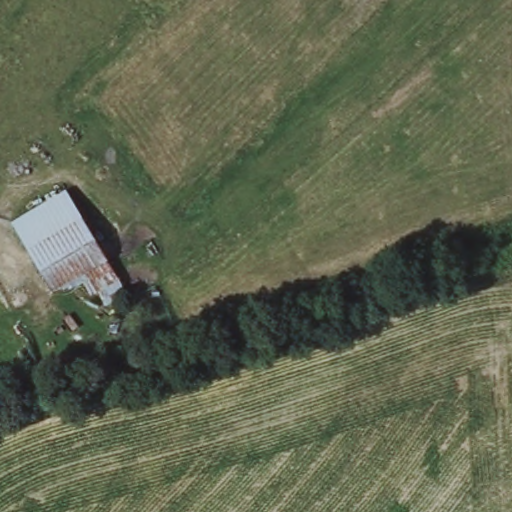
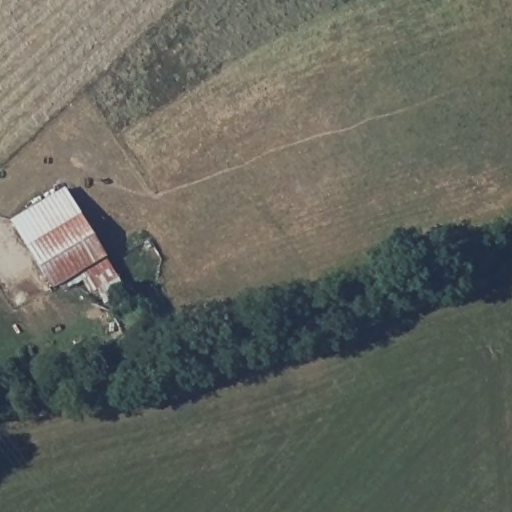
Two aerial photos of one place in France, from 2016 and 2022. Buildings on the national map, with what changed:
unchanged [(65,189),(107,252),(103,254),(54,286),(53,283),(13,222),(65,189)]
unchanged [(54,286),(107,252),(131,292),(108,306),(100,294),(92,300),(77,280),(59,292),(54,286)]

